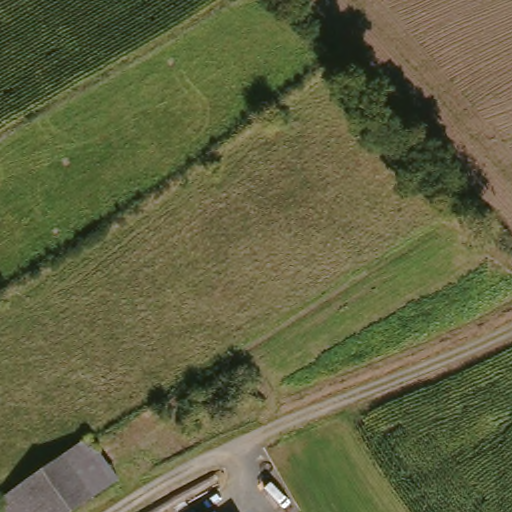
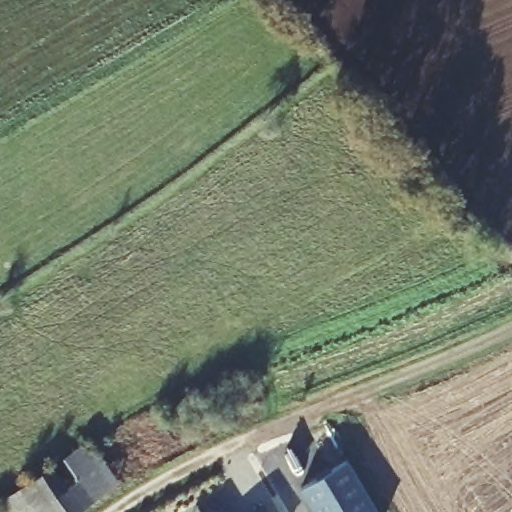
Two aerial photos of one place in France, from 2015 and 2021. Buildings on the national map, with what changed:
unchanged [(77,512),(1,512),(0,510),(0,506),(86,446),(114,486),(77,512)]
new [(301,489),(348,463),(376,512),(314,512),(301,489)]
unchanged [(218,511),(219,512),(216,512),(218,511)]

